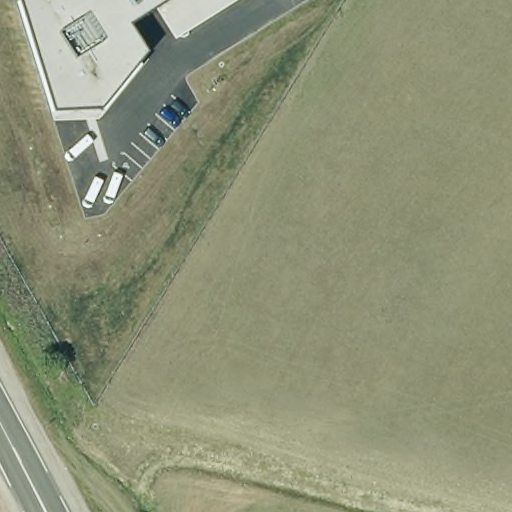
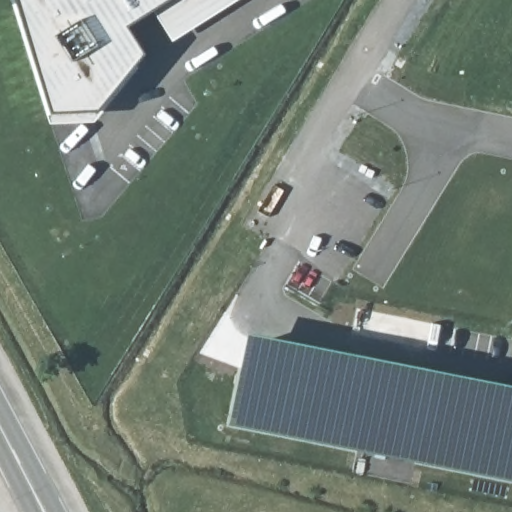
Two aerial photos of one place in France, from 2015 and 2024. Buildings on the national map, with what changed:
unchanged [(170,1),(176,10),(162,19),(156,10),(153,12),(126,28),(144,56),(96,113),(49,115),(13,0),(172,0),(170,1)]
new [(153,12),(156,10),(162,19),(176,10),(170,1),(172,0),(238,0),(171,42),(153,12)]
new [(238,420),(249,350),(512,393),(512,473),(238,420)]

